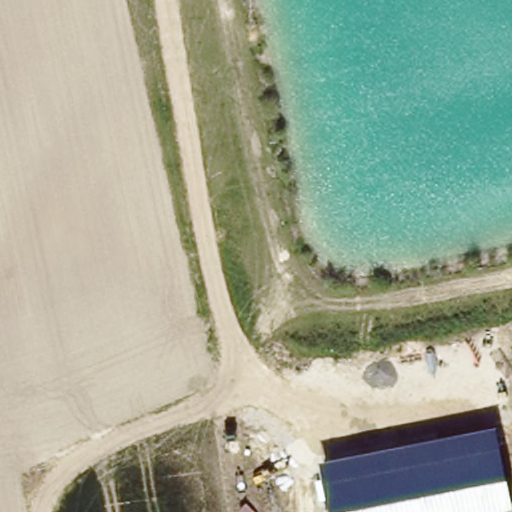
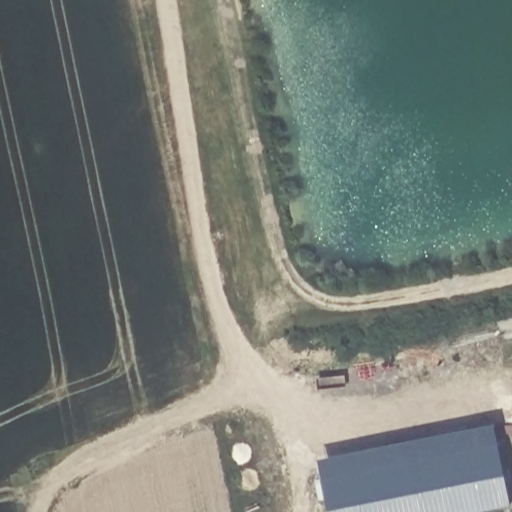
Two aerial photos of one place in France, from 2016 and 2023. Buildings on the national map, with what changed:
unchanged [(512,498),(512,503),(465,512),(330,512),(319,456),(496,422),(512,498)]

